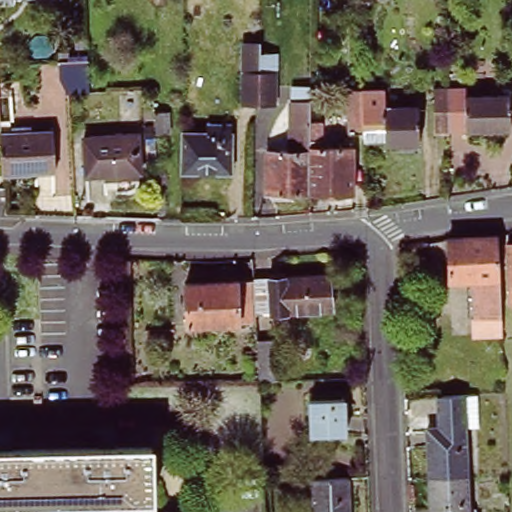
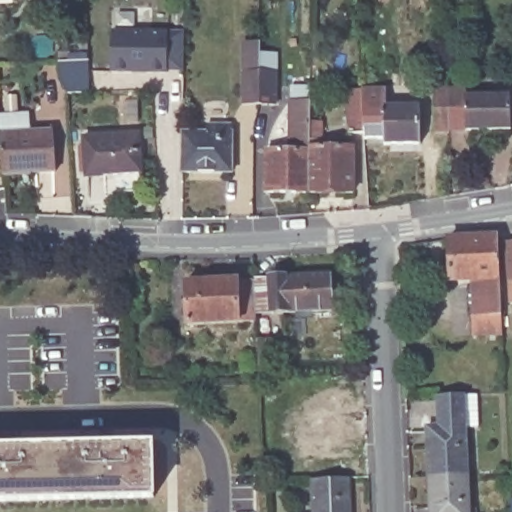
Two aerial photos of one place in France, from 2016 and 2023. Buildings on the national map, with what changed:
new [(182,70),(167,69),(167,74),(112,72),(112,31),(168,31),(183,31),(182,70)]
unchanged [(275,100),(260,100),(243,100),(244,41),(261,41),(260,70),(276,70),(275,100)]
unchanged [(57,66),(57,49),(89,47),(90,78),(67,79),(57,66)]
unchanged [(347,100),(362,99),(362,87),(385,86),(384,104),(417,104),(417,140),(384,140),(384,134),(365,134),(364,129),(349,129),(347,100)]
unchanged [(435,134),(434,91),(447,90),(465,90),(465,98),(510,97),(510,131),(448,131),(449,134),(435,134)]
unchanged [(263,194),(265,153),(285,153),(286,101),(305,101),(305,122),(304,193),(263,194)]
demolished [(170,112),(171,132),(158,132),(157,113),(170,112)]
unchanged [(317,122),(317,149),(349,149),(348,193),(304,193),(305,122),(317,122)]
unchanged [(233,125),(232,172),(185,172),(185,133),(208,133),(209,125),(233,125)]
unchanged [(12,134),(12,128),(44,126),(45,131),(55,131),(57,171),(4,175),(1,135),(12,134)]
unchanged [(137,135),(140,174),(86,177),(84,138),(137,135)]
unchanged [(497,232),(500,308),(502,330),(470,331),(470,278),(450,276),(449,235),(497,232)]
unchanged [(509,305),(505,241),(512,241),(512,305),(509,305)]
unchanged [(249,276),(249,273),(325,270),(327,306),(250,308),(249,276)]
unchanged [(251,317),(183,320),(182,278),(249,276),(250,308),(251,317)]
unchanged [(280,336),(281,376),(264,377),(262,337),(280,336)]
unchanged [(434,479),(432,430),(443,429),(443,397),(467,396),(471,477),(434,479)]
unchanged [(343,399),(345,434),(312,435),(311,400),(343,399)]
unchanged [(155,500),(0,502),(0,452),(154,449),(155,500)]
unchanged [(347,477),(348,512),(313,512),(312,479),(347,477)]
unchanged [(472,512),(435,512),(434,479),(471,477),(472,512)]

